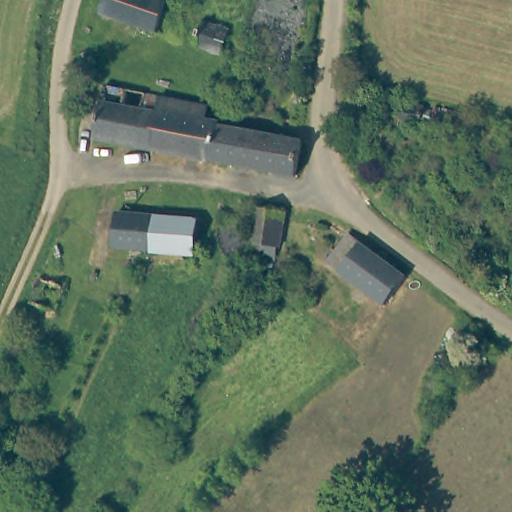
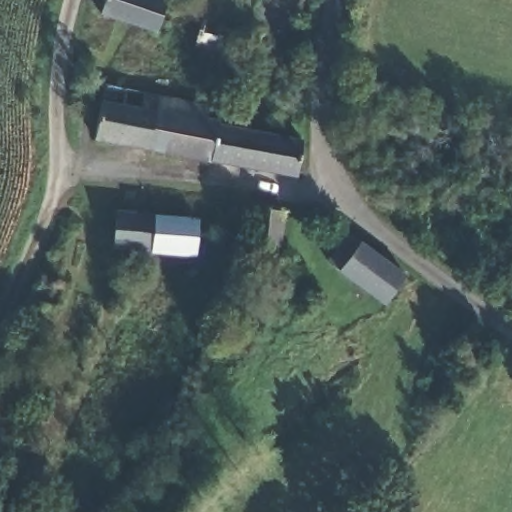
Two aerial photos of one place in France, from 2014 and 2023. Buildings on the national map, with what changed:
unchanged [(167,0),(165,6),(156,32),(101,14),(105,0),(167,0)]
unchanged [(203,19),(224,25),(216,52),(195,45),(203,19)]
unchanged [(152,149),(95,138),(105,85),(162,96),(152,149)]
unchanged [(152,149),(162,96),(209,105),(206,118),(219,121),(221,121),(220,125),(209,160),(152,149)]
unchanged [(400,120),(404,101),(426,106),(425,109),(433,110),(430,121),(422,120),(421,124),(400,120)]
unchanged [(220,125),(303,141),(296,176),(209,160),(220,125)]
unchanged [(280,212),(274,247),(273,247),(270,260),(252,258),(254,245),(245,243),(247,227),(251,208),(280,212)]
unchanged [(148,243),(110,240),(112,212),(150,215),(148,243)]
unchanged [(150,215),(192,220),(190,254),(147,251),(148,243),(150,215)]
unchanged [(385,305),(327,260),(348,232),(406,276),(385,305)]
unchanged [(40,277),(66,288),(56,313),(29,302),(40,277)]

